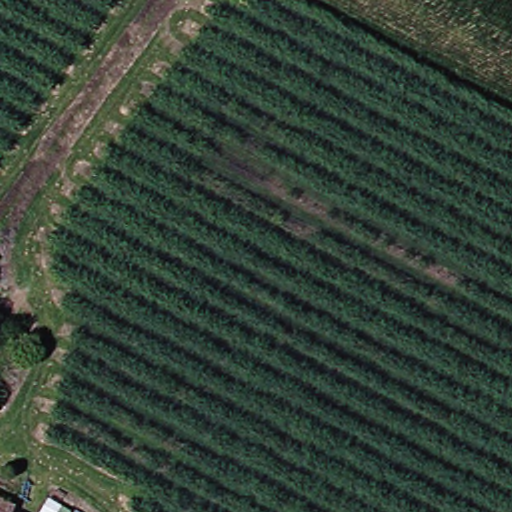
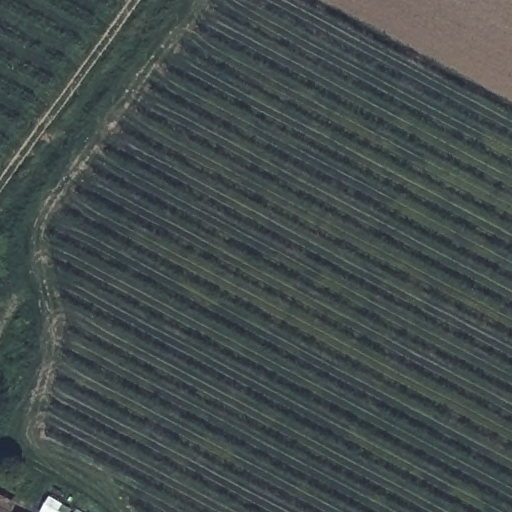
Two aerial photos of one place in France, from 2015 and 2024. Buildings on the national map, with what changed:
unchanged [(8,490),(19,496),(13,509),(19,512),(0,512),(0,486),(8,490)]

